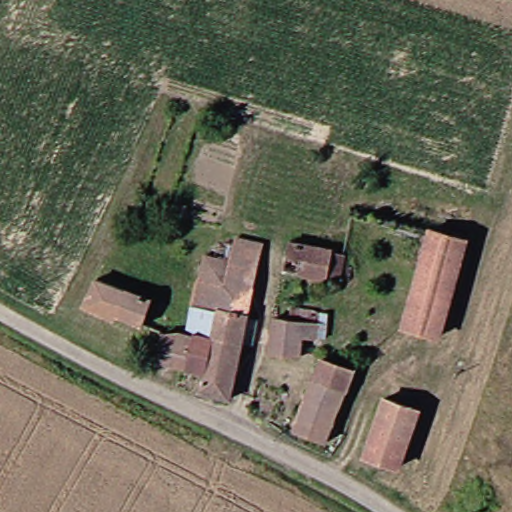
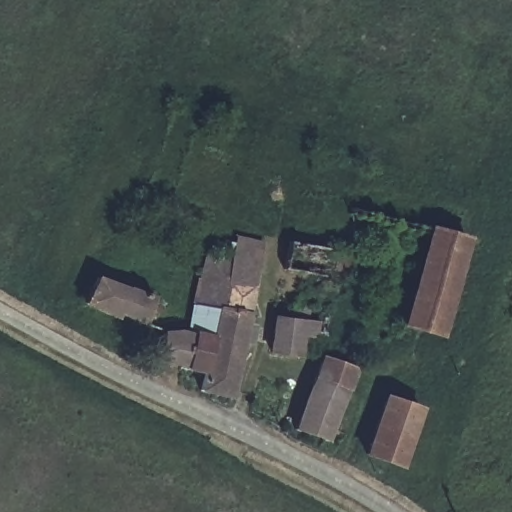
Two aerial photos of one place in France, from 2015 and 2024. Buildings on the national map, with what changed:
unchanged [(404,302),(414,260),(422,230),(456,239),(431,336),(426,335),(398,327),(404,302)]
unchanged [(250,348),(237,345),(224,401),(191,392),(194,372),(139,359),(144,340),(150,322),(181,333),(188,306),(193,282),(200,283),(208,252),(220,254),(224,237),(235,239),(237,231),(262,238),(242,321),(255,324),(250,348)]
unchanged [(339,255),(328,293),(274,281),(284,242),(339,255)]
unchanged [(131,322),(113,311),(109,318),(82,302),(92,279),(139,306),(131,322)]
unchanged [(317,333),(298,330),(288,365),(268,359),(277,321),(294,324),(298,308),(321,311),(317,333)]
unchanged [(323,439),(293,428),(313,362),(344,369),(323,439)]
unchanged [(400,462),(390,459),(387,469),(352,454),(370,395),(401,405),(407,407),(393,448),(403,451),(400,462)]

